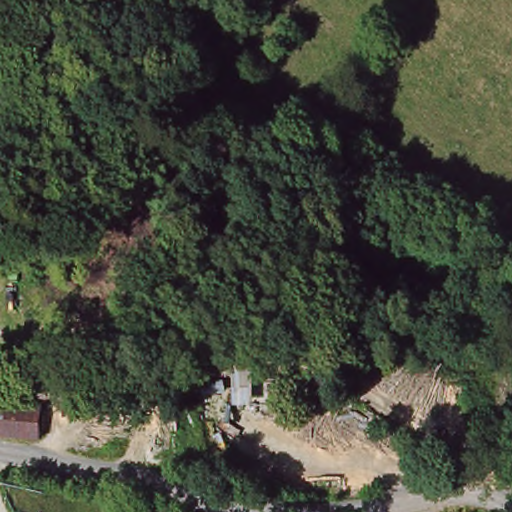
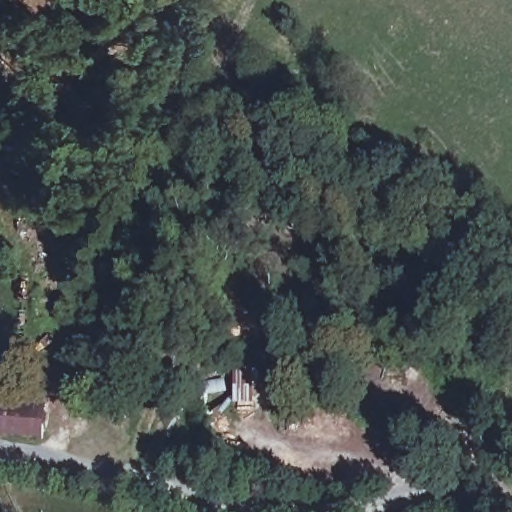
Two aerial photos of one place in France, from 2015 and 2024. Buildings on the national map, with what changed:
unchanged [(42,438),(1,431),(4,400),(45,405),(42,438)]

